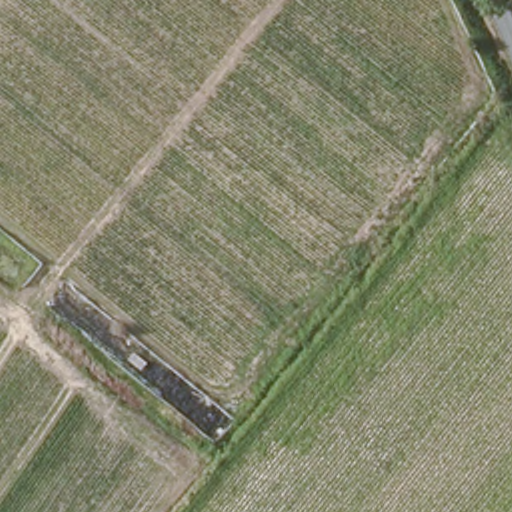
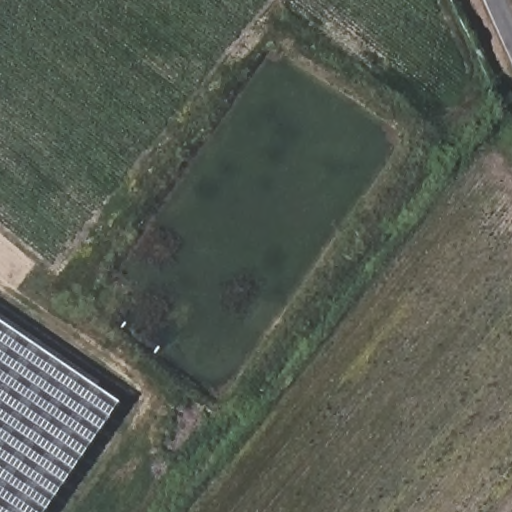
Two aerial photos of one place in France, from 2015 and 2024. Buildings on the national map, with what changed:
new [(39,512),(0,512),(0,321),(114,399),(39,512)]

